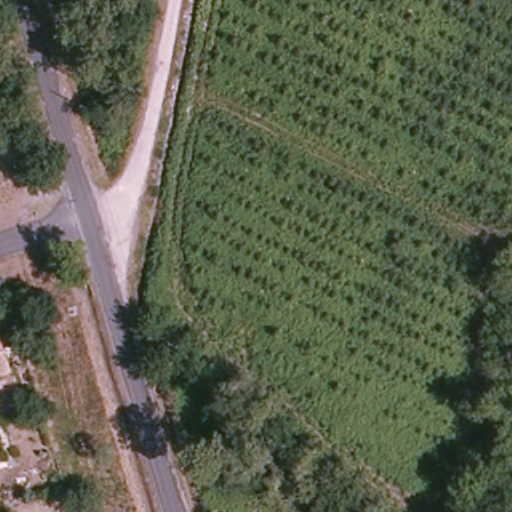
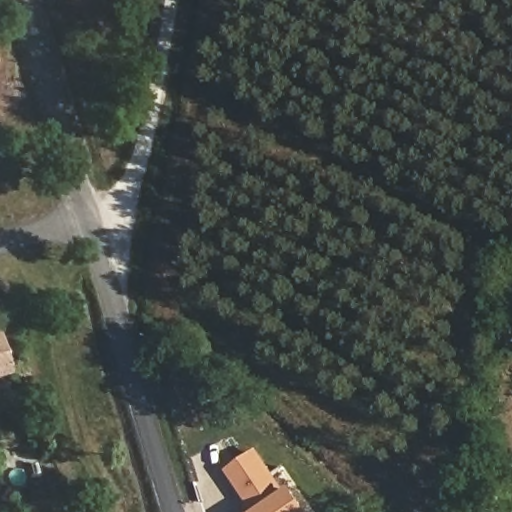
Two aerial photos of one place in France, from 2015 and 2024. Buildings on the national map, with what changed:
unchanged [(7,374),(0,376),(0,350),(7,374)]
new [(257,448),(287,492),(292,488),(308,512),(253,512),(225,470),(257,448)]

